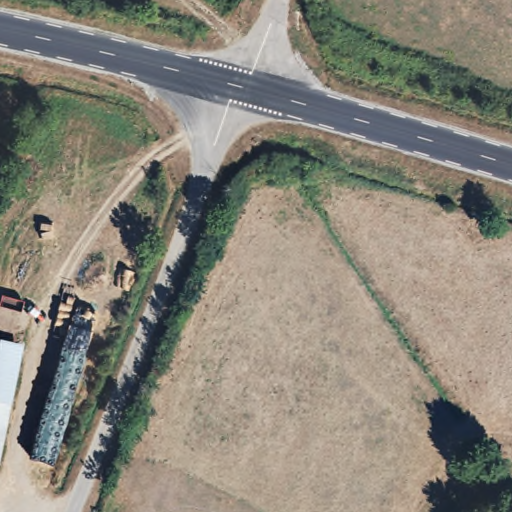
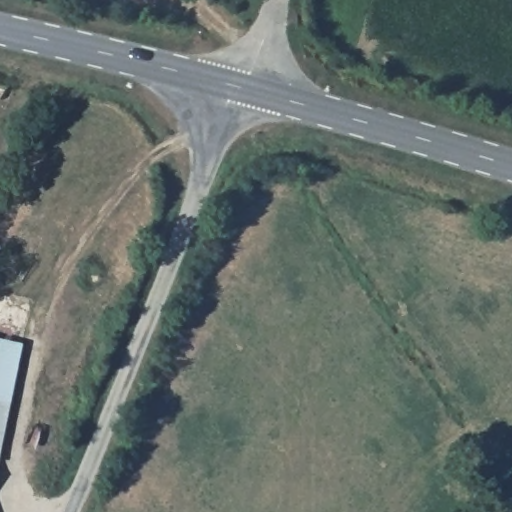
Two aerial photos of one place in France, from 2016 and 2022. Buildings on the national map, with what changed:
unchanged [(17,344),(0,433),(0,341),(17,344)]

